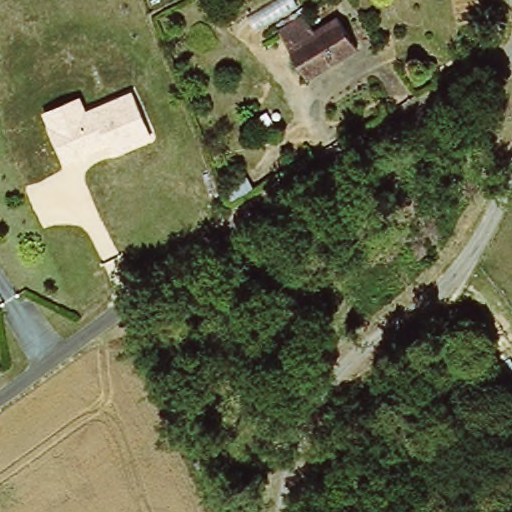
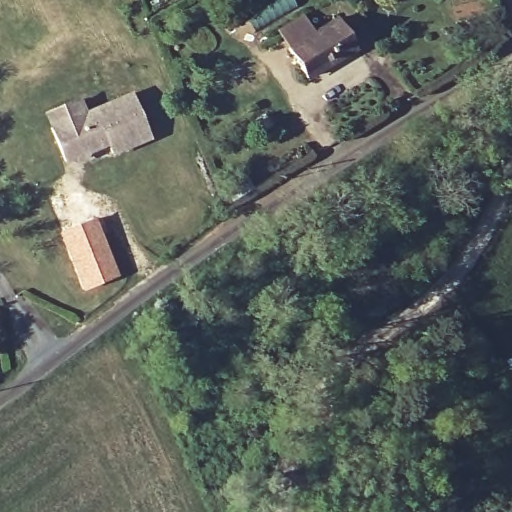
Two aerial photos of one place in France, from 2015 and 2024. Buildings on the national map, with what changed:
unchanged [(312,86),(279,31),(311,13),(317,29),(338,19),(361,51),(312,86)]
unchanged [(83,98),(88,112),(133,92),(151,138),(111,155),(109,148),(65,167),(44,114),(83,98)]
new [(96,218),(120,276),(84,292),(59,233),(96,218)]
unchanged [(496,365),(512,359),(512,395),(496,365)]

